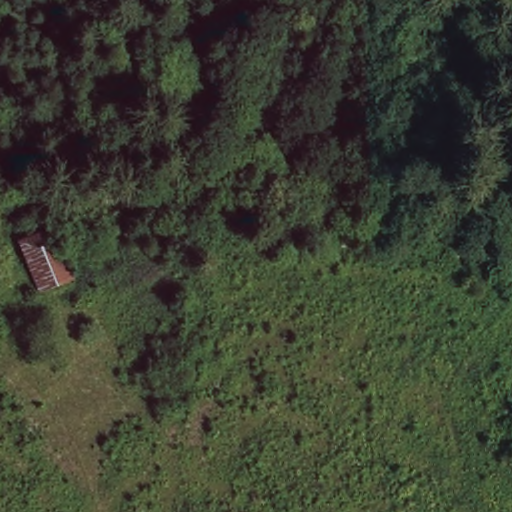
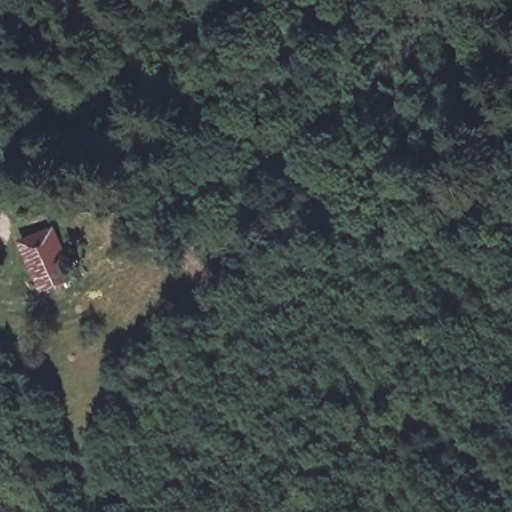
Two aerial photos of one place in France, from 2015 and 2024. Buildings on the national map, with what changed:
unchanged [(75,284),(44,296),(25,246),(56,235),(75,284)]

